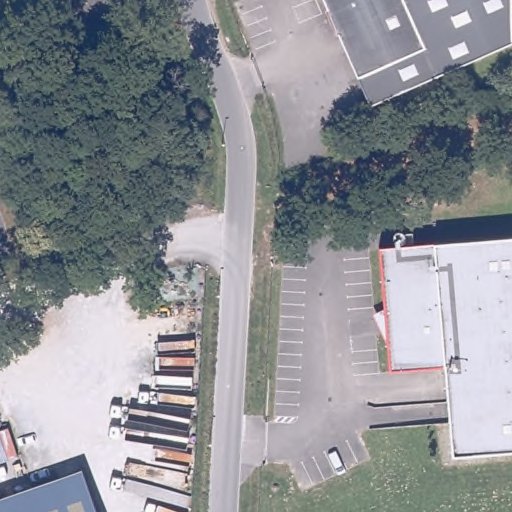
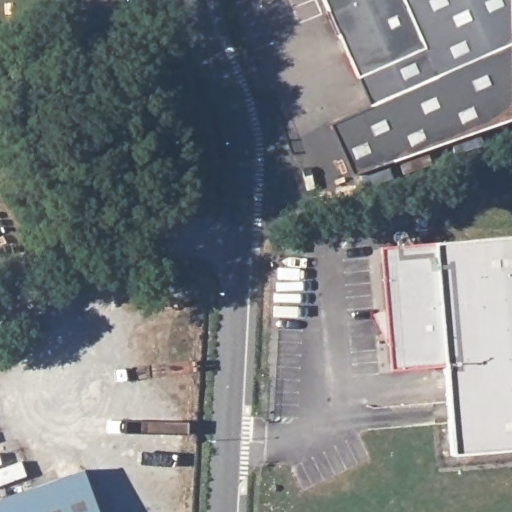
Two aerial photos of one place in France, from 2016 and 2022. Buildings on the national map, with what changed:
unchanged [(422,52),(353,79),(322,0),(401,0),(422,52)]
unchanged [(512,45),(368,107),(355,78),(422,52),(401,0),(512,0),(512,45)]
new [(512,45),(512,118),(351,176),(329,124),(368,107),(512,45)]
unchanged [(446,364),(393,368),(390,332),(382,316),(388,314),(383,247),(512,237),(512,449),(453,454),(446,364)]
unchanged [(97,512),(0,512),(0,499),(82,470),(97,512)]

